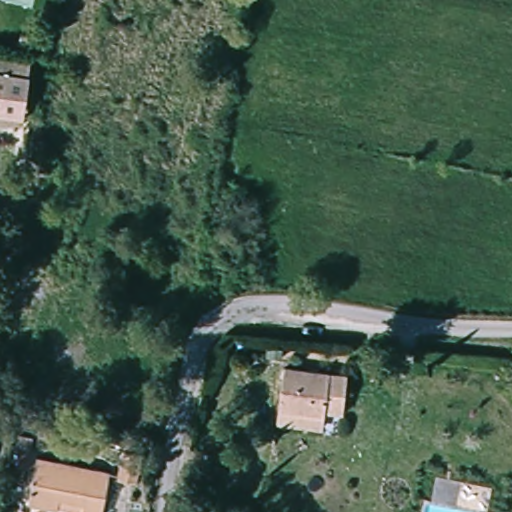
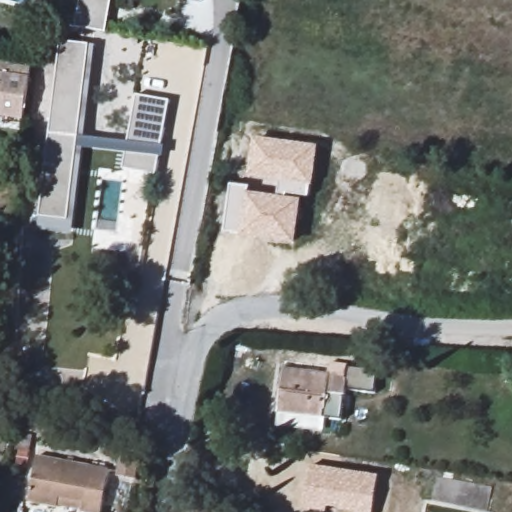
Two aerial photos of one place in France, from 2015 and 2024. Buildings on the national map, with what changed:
new [(105,34),(74,27),(79,0),(111,0),(105,34)]
new [(94,44),(72,235),(37,231),(38,218),(58,41),(88,44),(94,44)]
unchanged [(27,75),(23,116),(0,114),(0,56),(29,59),(27,75)]
new [(135,95),(170,101),(161,147),(127,143),(135,95)]
new [(278,196),(281,180),(250,175),(257,137),(319,146),(314,184),(312,184),(310,199),(303,198),(296,242),(240,236),(242,232),(225,230),(230,183),(250,186),(248,192),(278,196)]
new [(160,156),(156,176),(122,170),(125,152),(160,156)]
new [(328,373),(331,363),(348,365),(348,366),(377,370),(375,392),(346,388),(342,421),(323,417),(328,373)]
unchanged [(328,373),(323,417),(275,413),(282,370),(328,373)]
unchanged [(135,453),(130,480),(108,476),(117,448),(135,453)]
unchanged [(89,512),(74,512),(67,510),(70,500),(51,494),(48,505),(20,500),(32,452),(98,468),(89,512)]
new [(374,512),(354,512),(355,510),(328,506),(327,512),(320,512),(302,508),(312,464),(380,475),(374,512)]
new [(430,471),(455,475),(450,499),(426,494),(430,471)]

